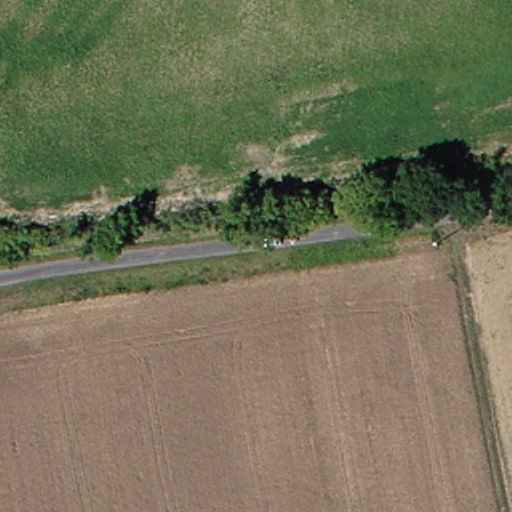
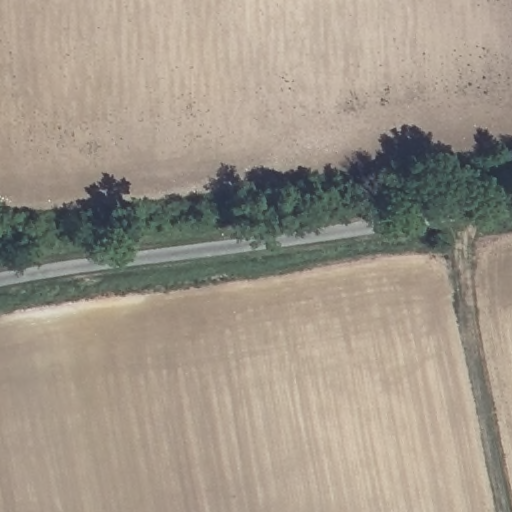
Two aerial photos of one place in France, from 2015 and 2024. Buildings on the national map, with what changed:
[]

